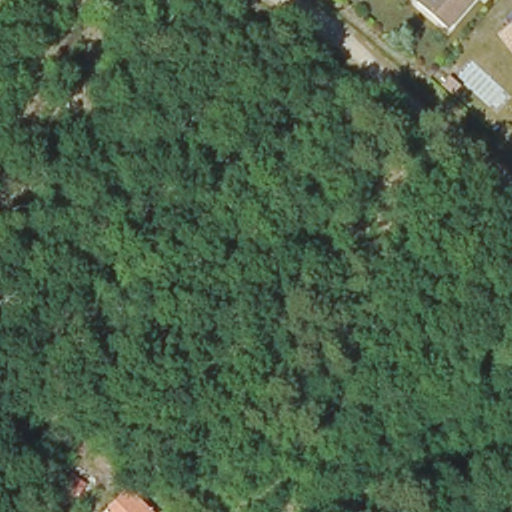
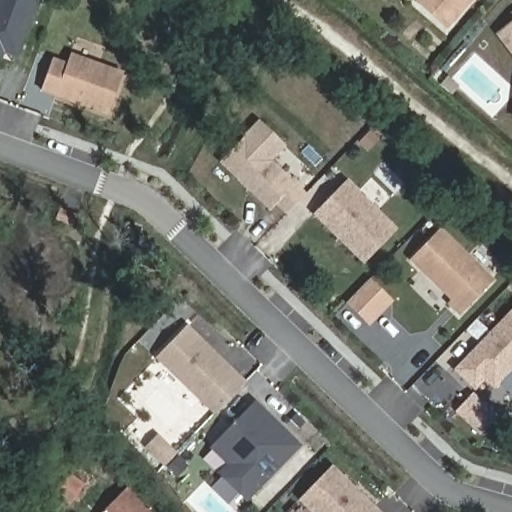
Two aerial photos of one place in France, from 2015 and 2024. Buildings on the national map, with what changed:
new [(0,56),(0,0),(38,0),(17,59),(1,53),(0,56)]
unchanged [(415,3),(417,0),(469,0),(443,29),(415,3)]
unchanged [(497,36),(512,25),(512,55),(497,36)]
new [(124,72),(109,115),(42,92),(54,57),(69,64),(72,53),(124,72)]
new [(288,213),(278,203),(272,209),(222,161),(260,122),(285,147),(272,160),(307,192),(288,213)]
new [(363,263),(313,214),(348,179),(398,229),(363,263)]
new [(412,261),(442,227),(496,281),(462,317),(447,303),(452,300),(412,261)]
new [(494,390),(486,380),(475,392),(455,371),(512,309),(512,370),(494,390)]
new [(214,414),(155,357),(188,323),(247,381),(214,414)]
new [(476,395),(498,417),(482,433),(460,411),(476,395)]
new [(256,400),(302,446),(247,502),(217,473),(227,463),(211,448),(256,400)]
new [(300,499),(332,465),(382,512),(312,512),(300,499)]
unchanged [(122,487),(152,512),(100,512),(122,487)]

